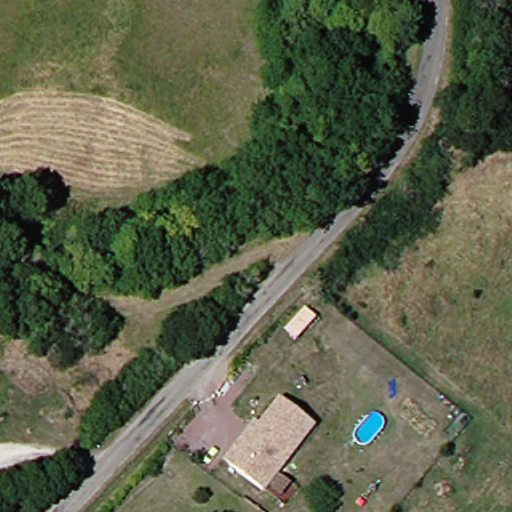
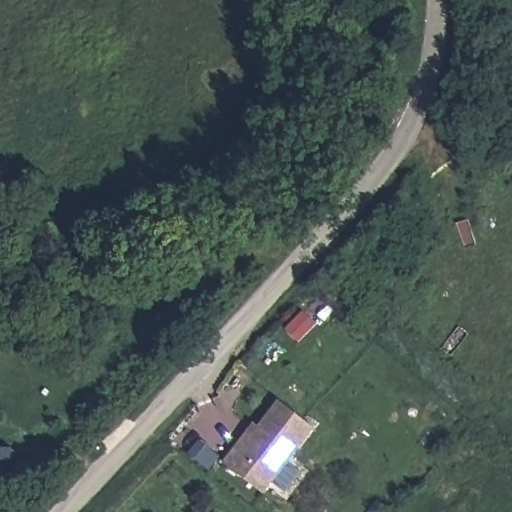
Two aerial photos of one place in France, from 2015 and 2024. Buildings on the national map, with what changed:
unchanged [(297,341),(287,332),(303,313),(313,322),(297,341)]
unchanged [(226,464),(236,451),(255,425),(260,428),(278,402),(314,427),(266,493),(226,464)]

